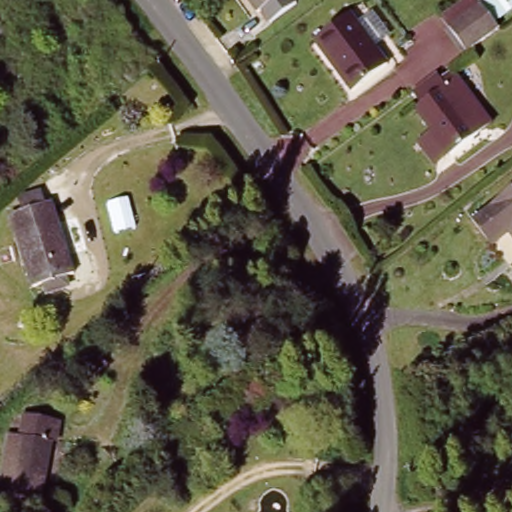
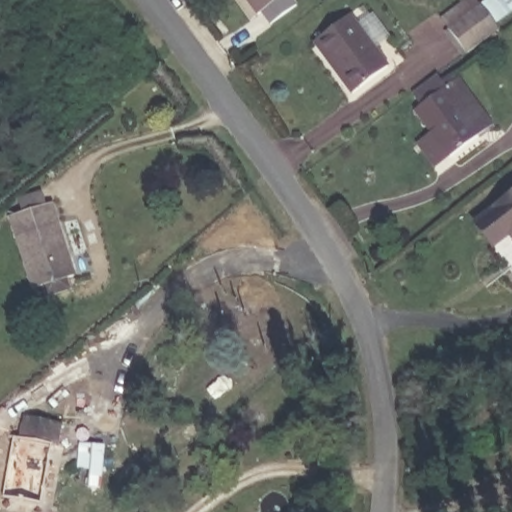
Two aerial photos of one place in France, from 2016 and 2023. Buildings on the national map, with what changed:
unchanged [(260,15),(246,0),(278,0),(260,15)]
unchanged [(477,7),(488,0),(509,0),(512,4),(512,8),(490,23),(496,30),(464,52),(440,20),(467,0),(470,0),(477,7)]
unchanged [(387,67),(355,93),(312,42),(345,16),(387,67)]
unchanged [(445,83),(458,75),(495,124),(437,170),(412,140),(427,129),(411,109),(418,104),(409,91),(437,73),(445,83)]
unchanged [(512,198),(512,249),(486,219),(512,198)]
unchanged [(48,199),(76,265),(67,269),(71,282),(52,289),(47,277),(34,281),(14,231),(9,216),(48,199)]
unchanged [(0,499),(0,495),(10,437),(21,438),(23,417),(62,422),(58,455),(50,454),(45,499),(44,506),(0,503),(0,499)]

